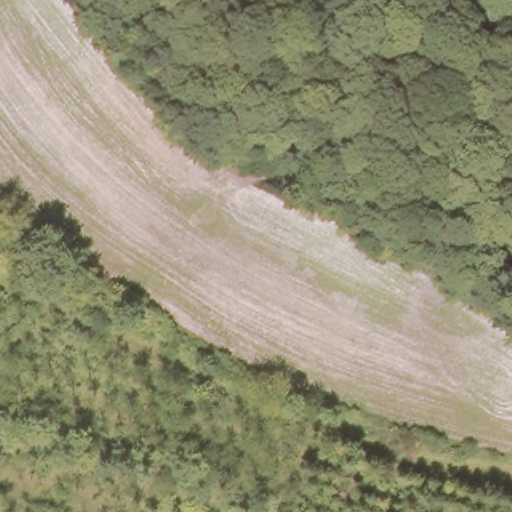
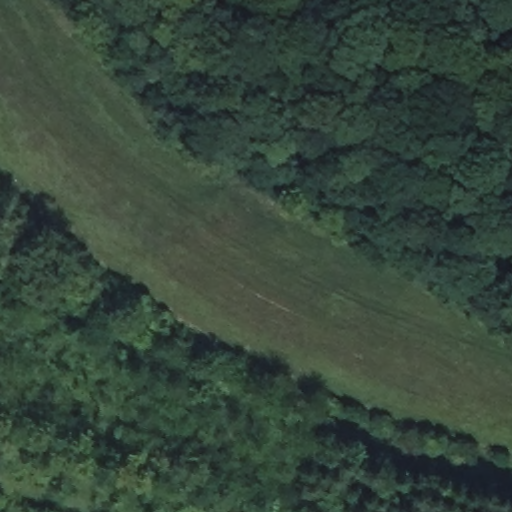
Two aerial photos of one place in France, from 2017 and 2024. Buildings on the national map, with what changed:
unchanged [(369,109),(372,104),(380,109),(379,112),(385,116),(374,132),(355,120),(352,122),(342,116),(355,99),(369,109)]

